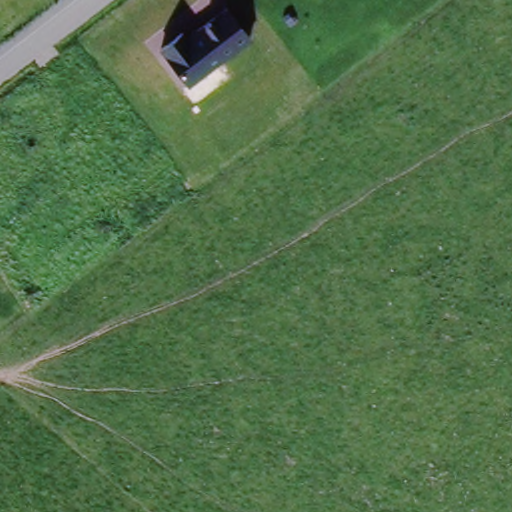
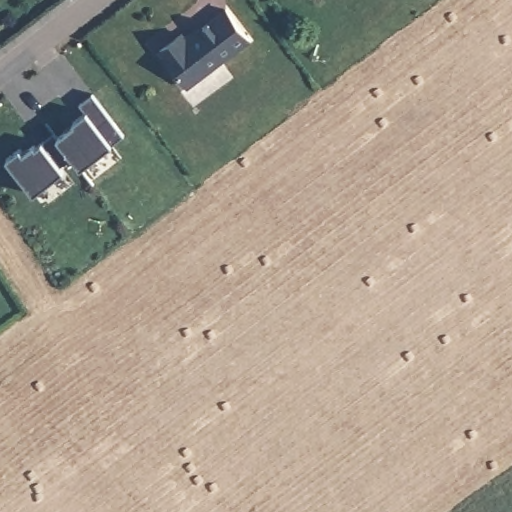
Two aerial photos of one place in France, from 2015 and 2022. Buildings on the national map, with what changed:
unchanged [(183,32),(187,37),(226,10),(249,41),(188,85),(159,49),(183,32)]
new [(127,141),(83,174),(56,137),(56,136),(60,141),(77,128),(75,126),(88,116),(81,107),(94,98),(127,141)]
new [(61,170),(67,177),(36,200),(8,163),(22,152),(25,157),(36,149),(38,151),(56,137),(73,161),(61,170)]

